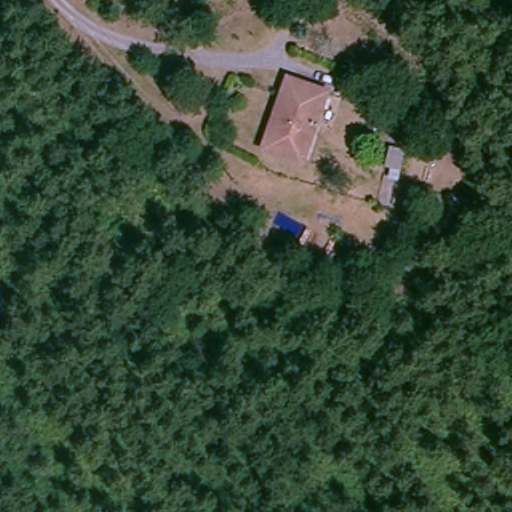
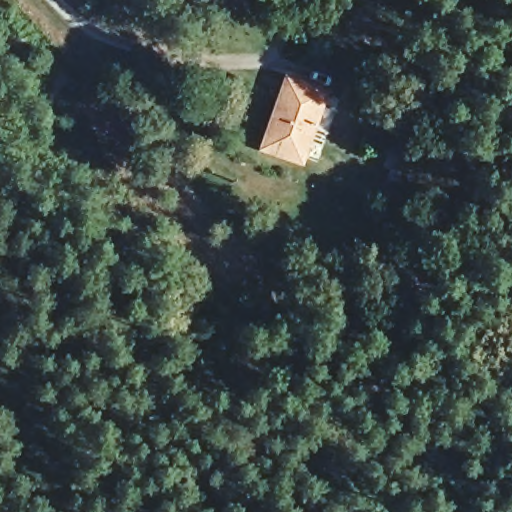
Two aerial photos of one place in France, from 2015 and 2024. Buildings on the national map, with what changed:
unchanged [(291,75),(330,88),(306,159),(267,145),(291,75)]

